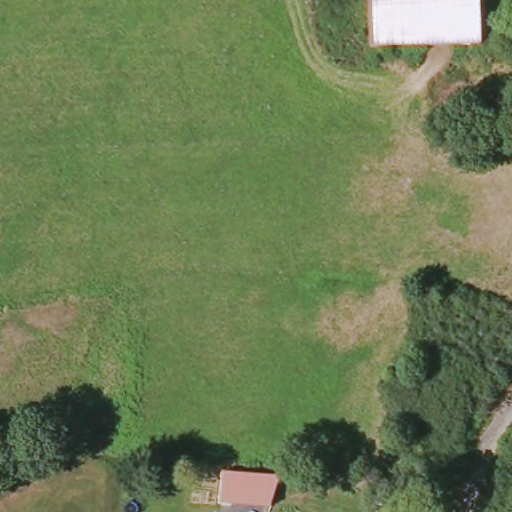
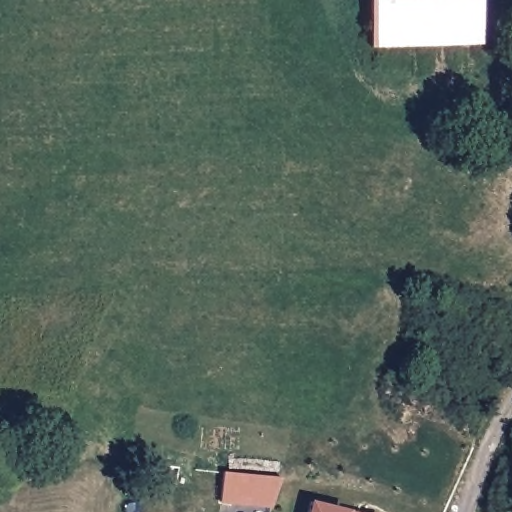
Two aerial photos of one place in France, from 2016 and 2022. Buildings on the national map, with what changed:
unchanged [(480,0),(481,44),(370,48),(367,0),(480,0)]
unchanged [(223,472),(281,477),(271,508),(220,502),(223,472)]
new [(310,502),(350,511),(356,512),(308,512),(310,502)]

